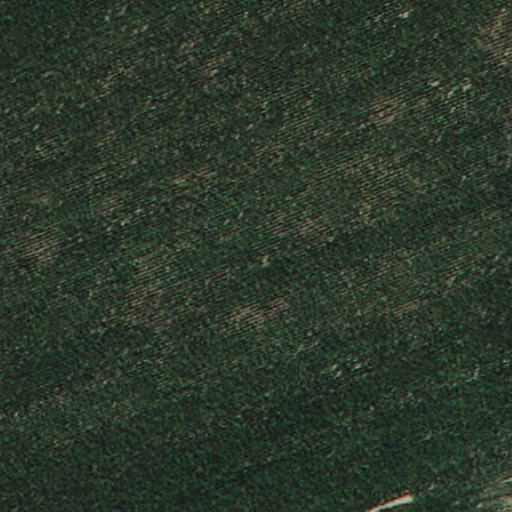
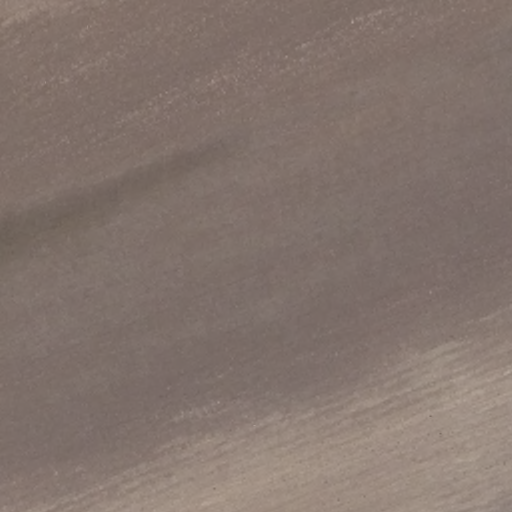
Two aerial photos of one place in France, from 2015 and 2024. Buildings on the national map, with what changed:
[]

